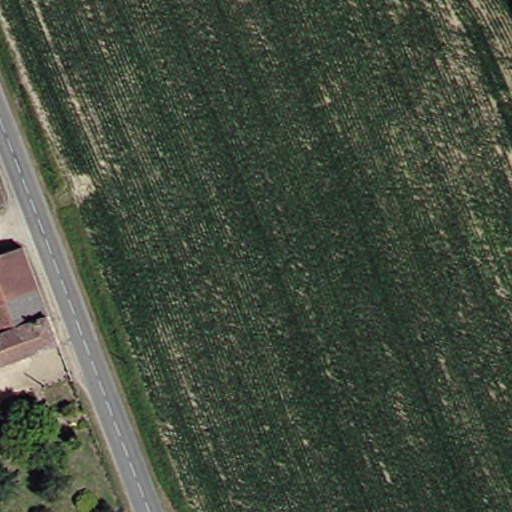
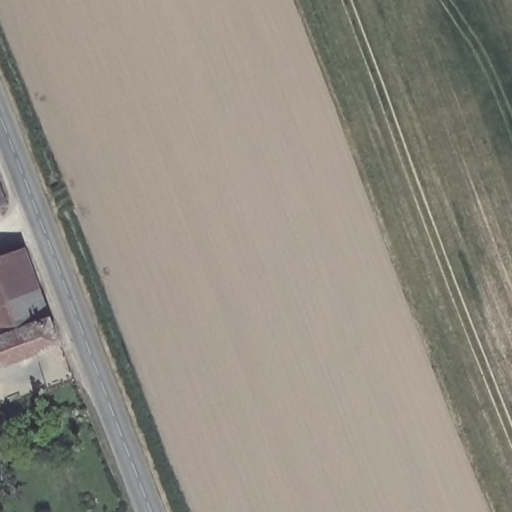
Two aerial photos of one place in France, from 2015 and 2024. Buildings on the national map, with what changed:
unchanged [(67,342),(0,368),(0,257),(29,246),(67,342)]
unchanged [(0,422),(12,456),(0,461),(0,422)]

